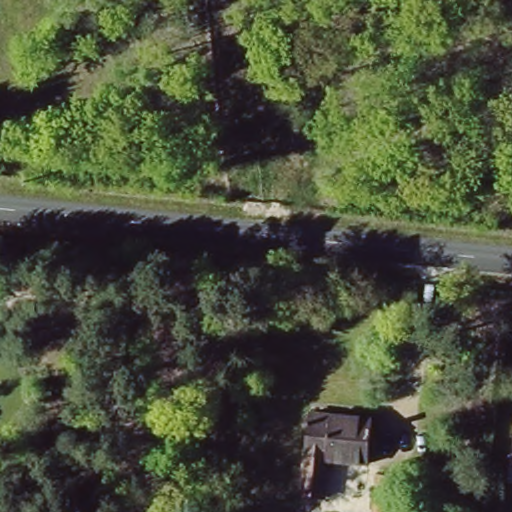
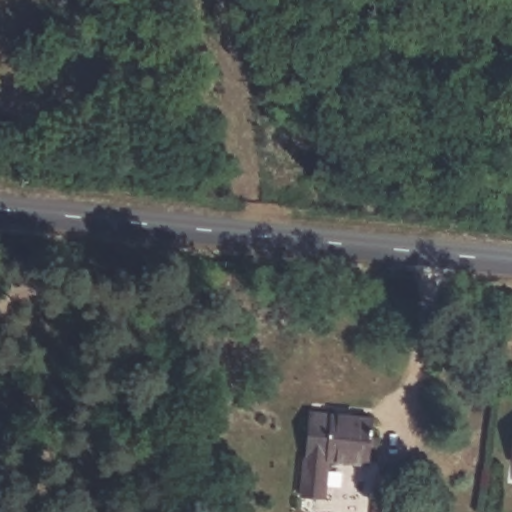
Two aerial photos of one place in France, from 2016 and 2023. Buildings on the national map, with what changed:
unchanged [(369,456),(339,453),(337,462),(321,460),(322,452),(306,450),(312,407),(375,412),(369,456)]
unchanged [(504,426),(512,427),(512,473),(497,471),(504,426)]
unchanged [(322,452),(321,460),(325,460),(322,497),(300,494),(306,450),(322,452)]
unchanged [(395,478),(392,508),(414,511),(413,512),(371,512),(375,476),(395,478)]

